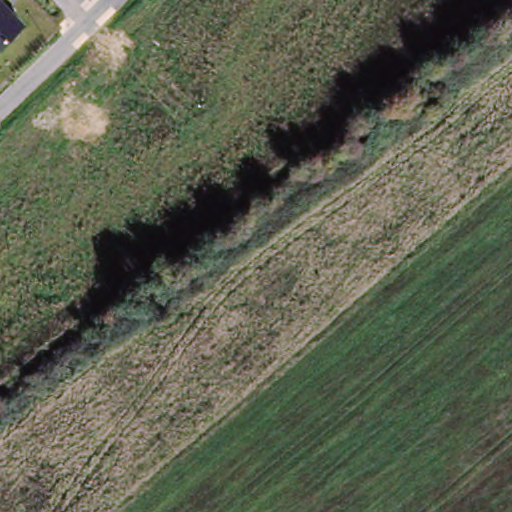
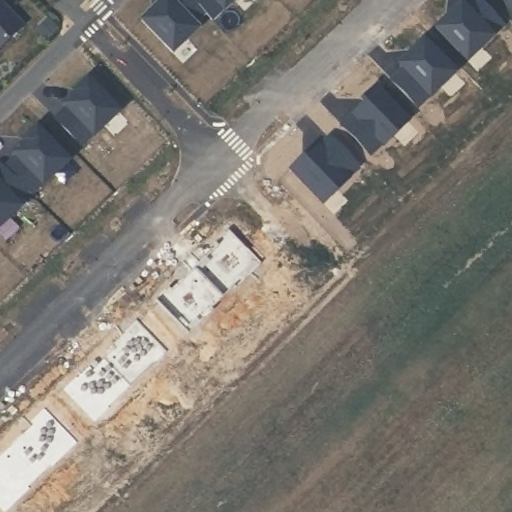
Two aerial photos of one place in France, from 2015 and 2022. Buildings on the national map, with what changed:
unchanged [(0,0),(1,0),(24,24),(0,50),(0,0)]
new [(163,5),(168,0),(202,0),(212,10),(201,20),(205,24),(193,35),(194,36),(180,50),(149,18),(162,4),(163,5)]
new [(212,10),(202,0),(235,0),(219,16),(212,10)]
new [(458,12),(470,0),(473,4),(477,0),(491,0),(510,20),(489,41),(490,42),(475,56),(444,24),(457,11),(458,12)]
new [(411,65),(407,61),(420,49),(419,48),(432,35),(464,68),(449,81),(448,81),(427,102),(400,75),(411,65)]
new [(75,106),(72,102),(82,91),(81,90),(95,76),(129,110),(115,124),(114,123),(91,145),(64,116),(75,106)]
new [(373,99),(370,96),(384,83),(417,116),(392,141),(390,140),(379,151),(350,121),(373,99)]
new [(24,155),(20,151),(32,141),(30,140),(45,126),(78,160),(64,174),(62,173),(40,194),(37,191),(13,166),(24,155)]
new [(312,153),(315,156),(338,133),(367,162),(356,173),(358,175),(332,200),(300,166),(312,153)]
new [(13,166),(37,191),(25,202),(29,205),(18,216),(20,217),(5,231),(0,226),(0,172),(10,163),(13,166)]

